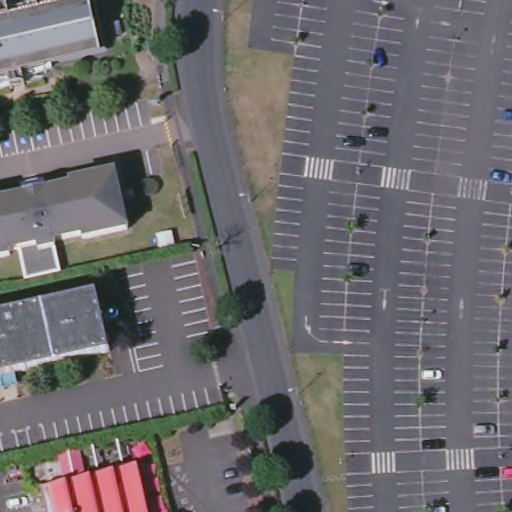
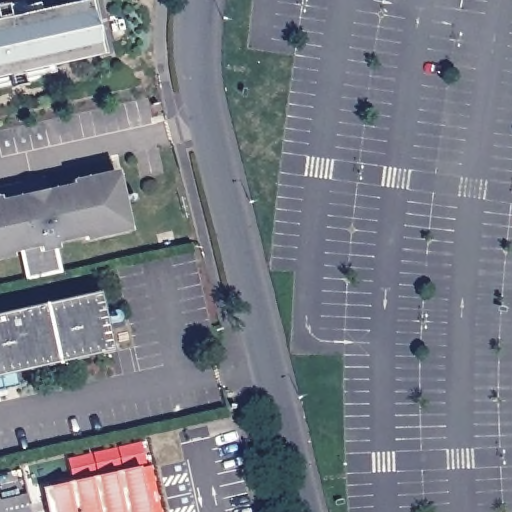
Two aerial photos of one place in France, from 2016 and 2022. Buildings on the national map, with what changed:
unchanged [(91,0),(101,45),(0,67),(0,19),(84,0),(91,0)]
unchanged [(85,235),(55,242),(62,273),(28,281),(22,250),(12,257),(0,259),(0,202),(74,186),(73,182),(116,172),(130,230),(87,239),(85,235)]
unchanged [(0,312),(98,291),(111,351),(3,375),(7,389),(0,390),(0,312)]
unchanged [(42,487),(138,466),(149,512),(47,512),(42,487)]

